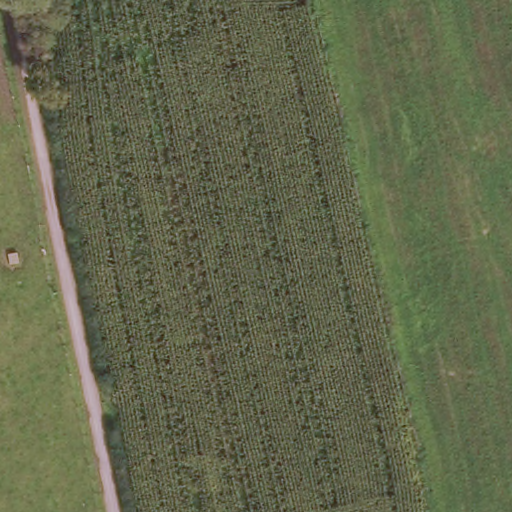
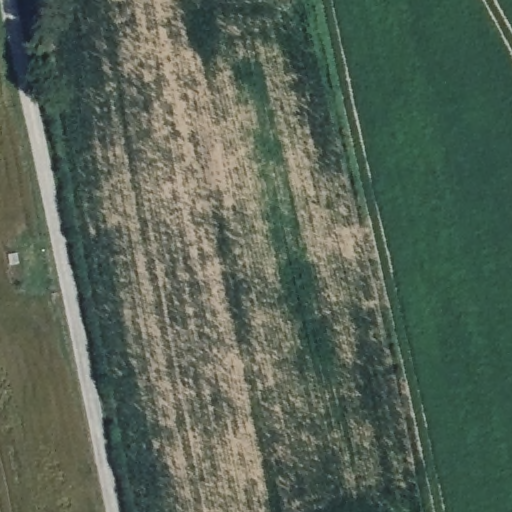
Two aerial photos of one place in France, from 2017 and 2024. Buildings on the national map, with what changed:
[]

